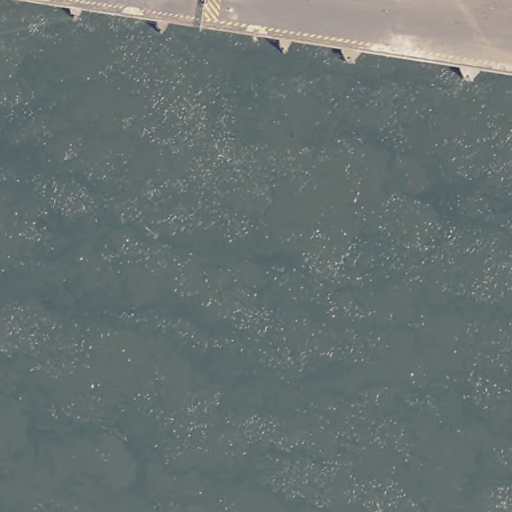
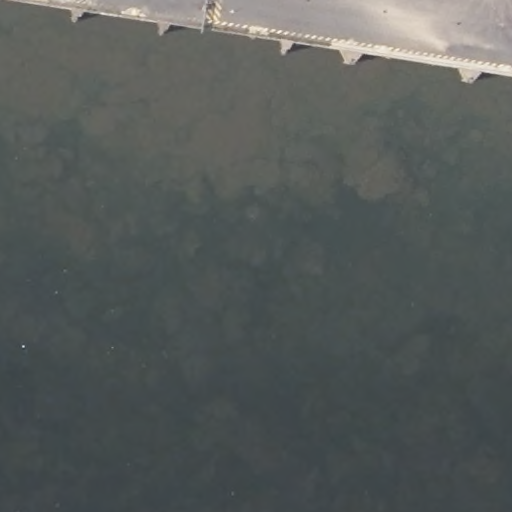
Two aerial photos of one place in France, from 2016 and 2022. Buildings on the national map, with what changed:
[]

